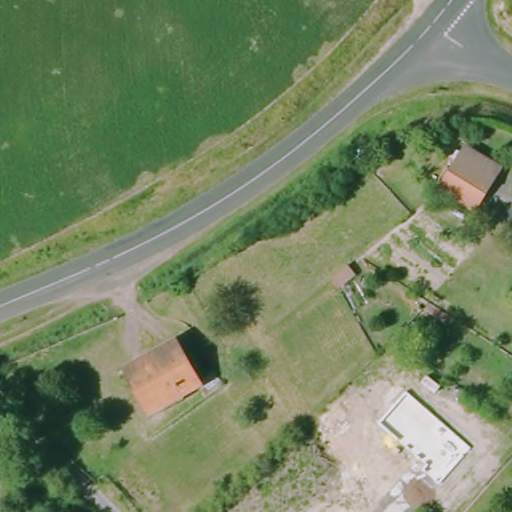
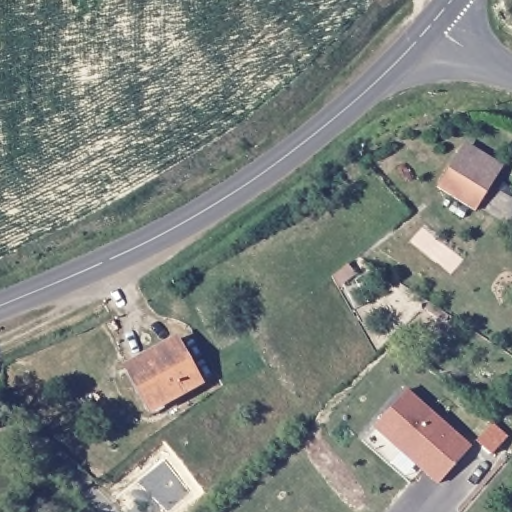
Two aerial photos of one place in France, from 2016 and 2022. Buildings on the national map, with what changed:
unchanged [(437,186),(463,149),(467,144),(499,166),(496,171),(472,206),(437,186)]
unchanged [(351,263),(356,271),(340,285),(334,276),(351,263)]
unchanged [(148,416),(123,371),(172,343),(197,387),(148,416)]
new [(373,428),(407,390),(471,446),(437,484),(373,428)]

